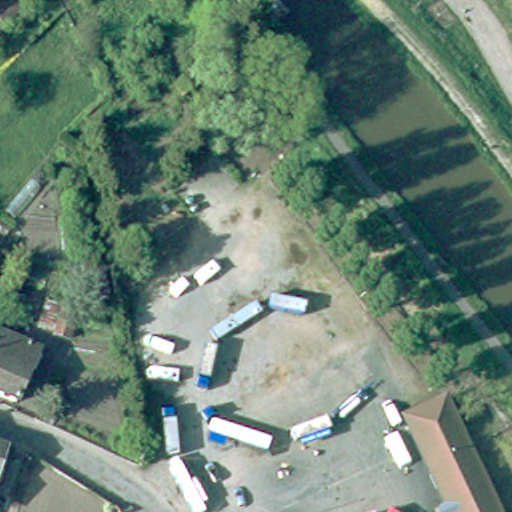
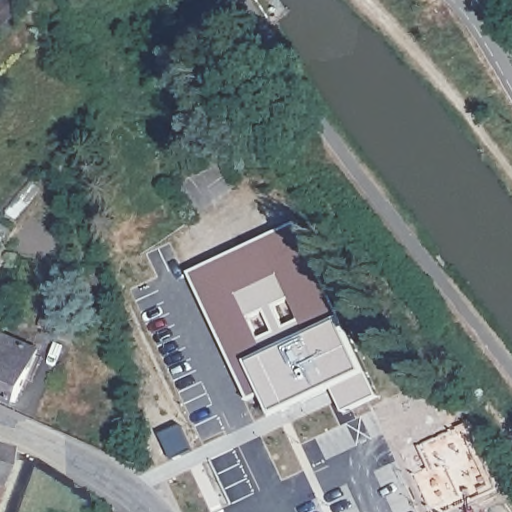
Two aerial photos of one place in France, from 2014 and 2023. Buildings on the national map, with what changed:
unchanged [(28,13),(22,18),(14,12),(8,19),(0,9),(0,3),(4,0),(17,0),(28,13)]
unchanged [(181,56),(163,71),(145,52),(164,35),(181,56)]
unchanged [(184,100),(175,89),(196,71),(204,81),(205,83),(184,100)]
new [(298,225),(379,395),(343,412),(329,389),(276,413),(267,393),(248,400),(191,273),(298,225)]
unchanged [(91,297),(85,276),(98,272),(104,293),(91,297)]
unchanged [(13,402),(0,397),(0,333),(36,351),(13,402)]
unchanged [(494,512),(444,512),(400,418),(442,400),(494,512)]
unchanged [(6,445),(0,464),(0,443),(6,445)]
unchanged [(1,478),(0,478),(0,471),(3,472),(1,478)]

